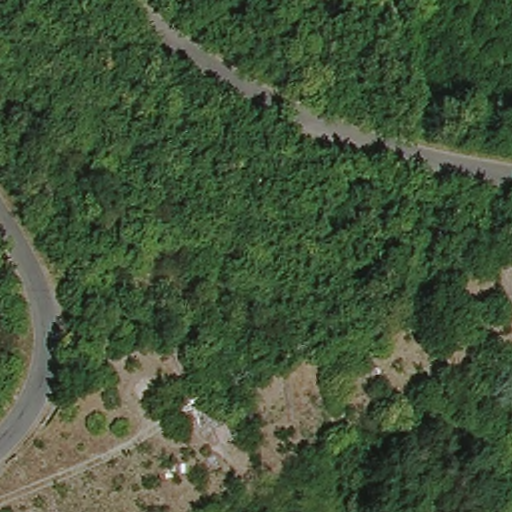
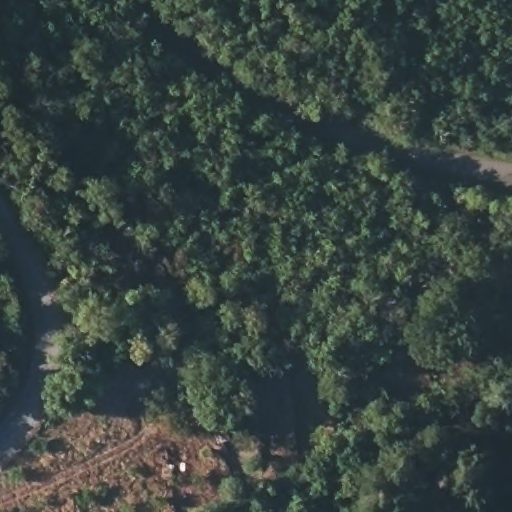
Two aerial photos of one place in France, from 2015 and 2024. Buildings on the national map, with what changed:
unchanged [(221,447),(215,450),(207,454),(197,436),(205,433),(210,430),(221,447)]

